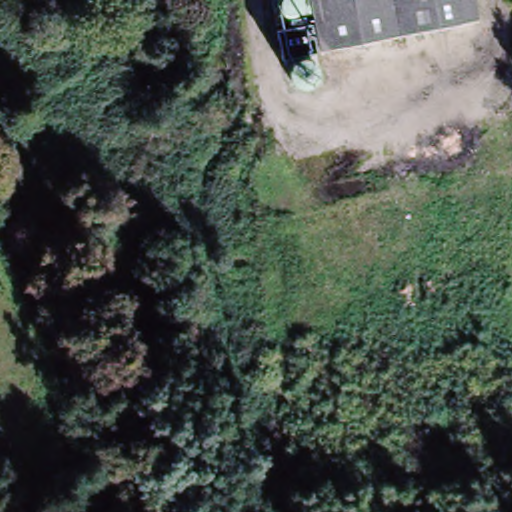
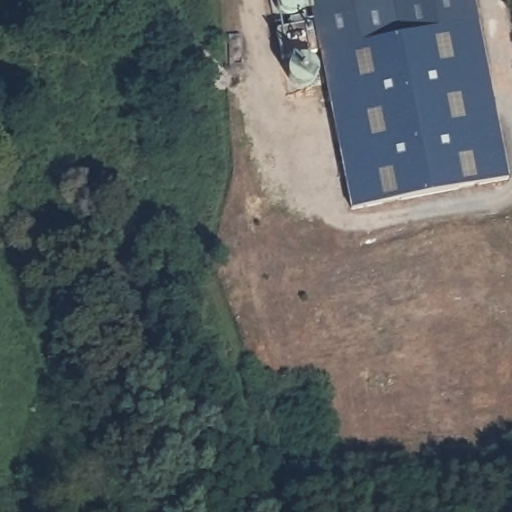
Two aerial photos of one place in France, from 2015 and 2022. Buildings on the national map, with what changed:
unchanged [(322,57),(311,0),(477,0),(482,26),(322,57)]
new [(482,26),(509,177),(352,209),(322,57),(482,26)]
new [(283,65),(277,36),(311,29),(317,59),(283,65)]
new [(295,68),(300,65),(304,64),(310,65),(315,69),(317,73),(318,75),(317,82),(315,86),(310,90),(305,91),(299,90),(295,87),(291,82),(290,76),(292,71),(295,68)]

